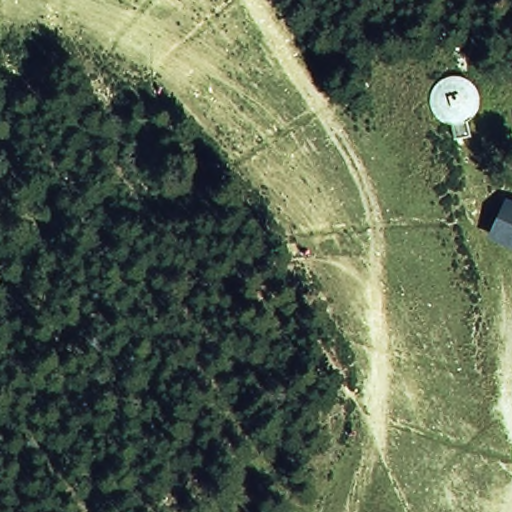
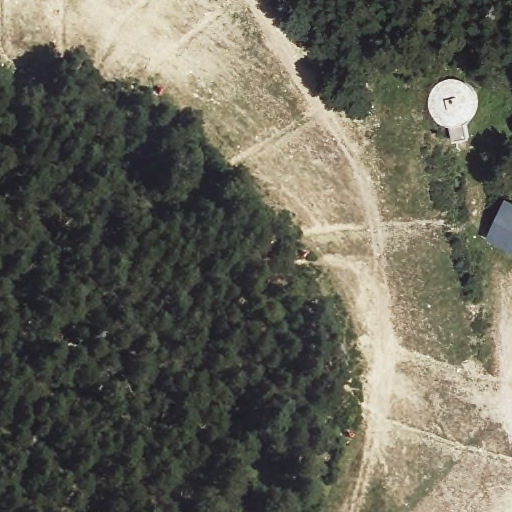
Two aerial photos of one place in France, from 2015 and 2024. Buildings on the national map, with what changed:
unchanged [(512,251),(483,240),(498,201),(512,207),(512,251)]

